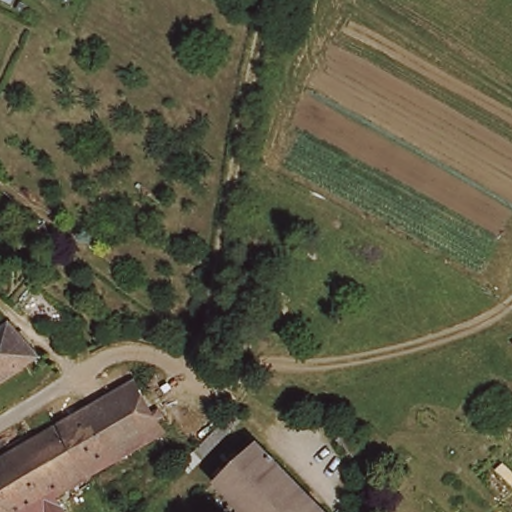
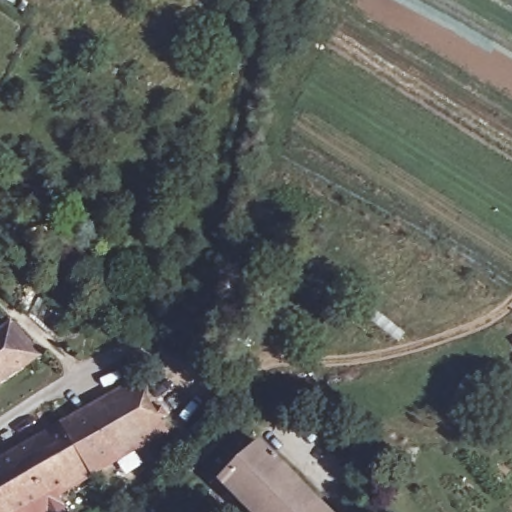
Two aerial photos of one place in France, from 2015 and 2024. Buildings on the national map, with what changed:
unchanged [(0,392),(0,335),(11,327),(40,362),(0,392)]
unchanged [(0,472),(141,380),(156,406),(163,401),(174,416),(165,421),(170,431),(63,502),(70,512),(0,512),(0,472)]
unchanged [(331,512),(258,512),(227,482),(263,447),(331,512)]

